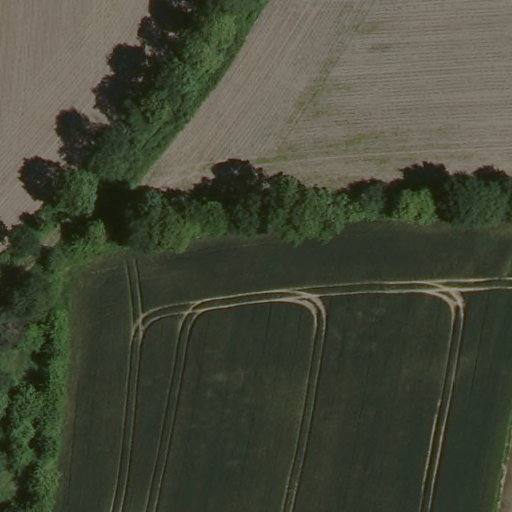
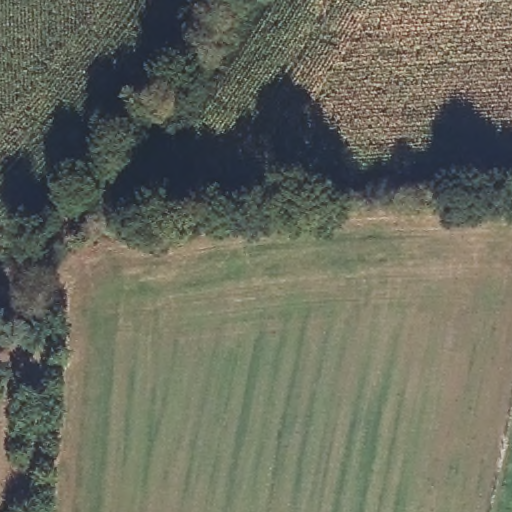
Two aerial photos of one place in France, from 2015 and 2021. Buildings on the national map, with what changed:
[]

